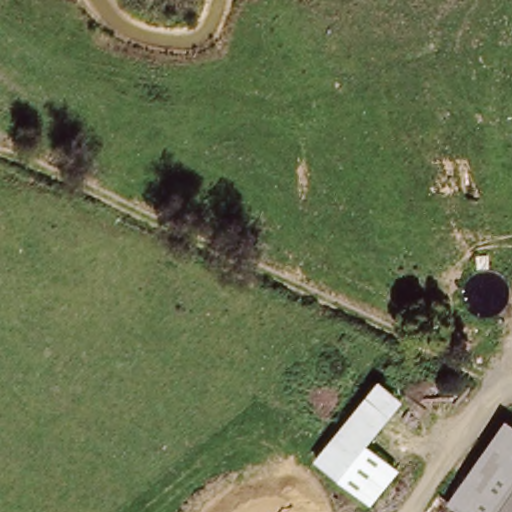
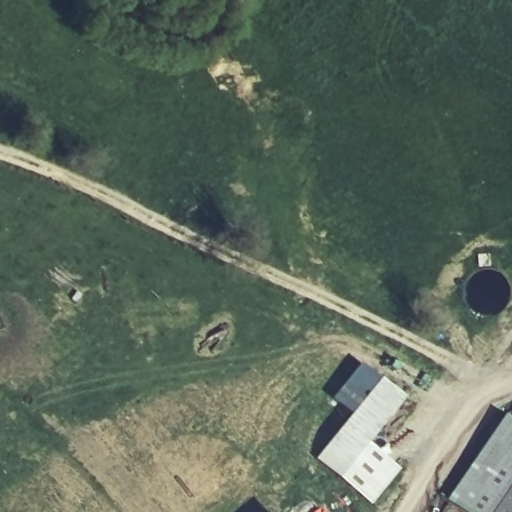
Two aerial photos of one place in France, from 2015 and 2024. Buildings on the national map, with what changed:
new [(332,398),(360,363),(381,382),(353,417),(332,398)]
unchanged [(318,461),(381,382),(403,400),(367,447),(342,478),(318,461)]
unchanged [(512,512),(469,512),(457,504),(460,498),(512,423),(512,512)]
unchanged [(397,470),(373,502),(342,478),(367,447),(397,470)]

